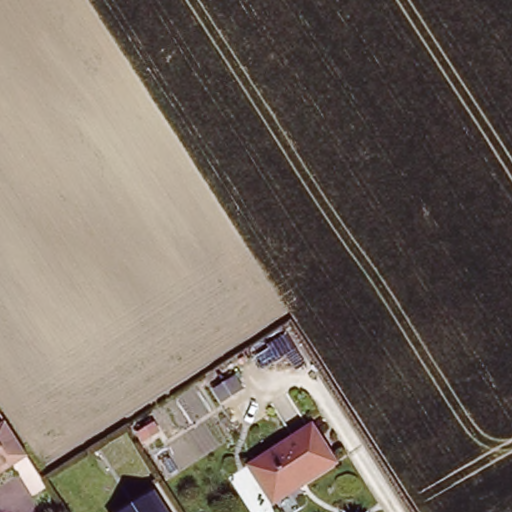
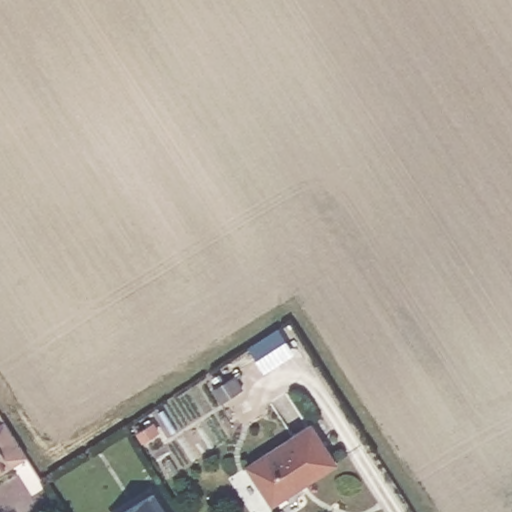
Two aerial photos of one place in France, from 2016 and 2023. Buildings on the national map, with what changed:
unchanged [(0,426),(4,423),(27,460),(0,477),(0,426)]
unchanged [(250,465),(311,424),(335,462),(276,503),(250,465)]
unchanged [(147,430),(153,440),(137,450),(131,441),(147,430)]
unchanged [(168,512),(132,512),(158,496),(168,512)]

